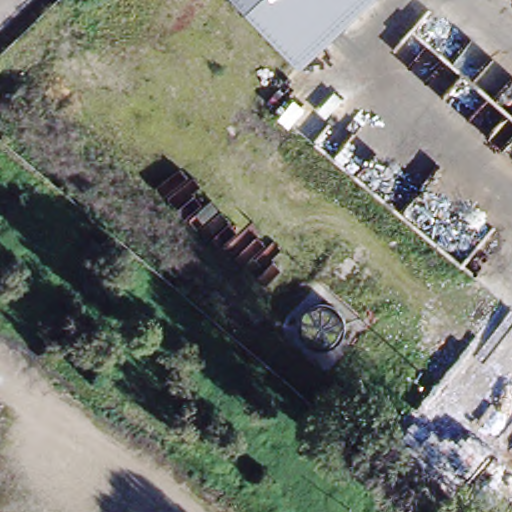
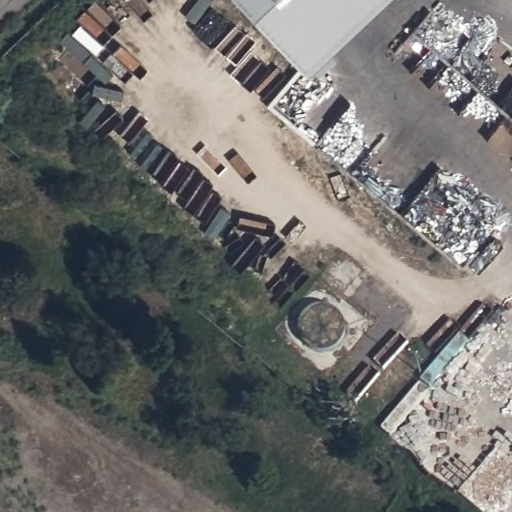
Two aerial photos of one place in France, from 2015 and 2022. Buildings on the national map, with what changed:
unchanged [(304,67),(241,0),(373,0),(304,67)]

